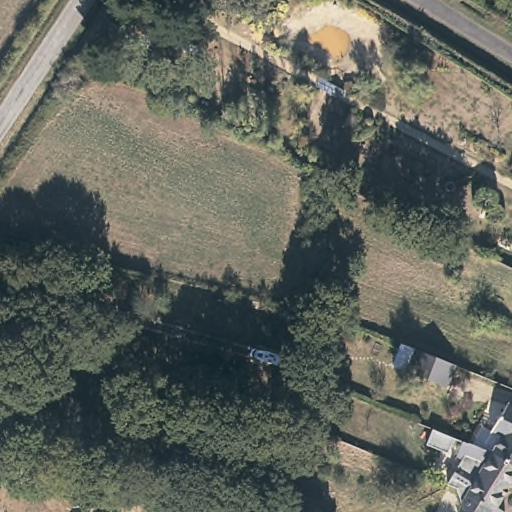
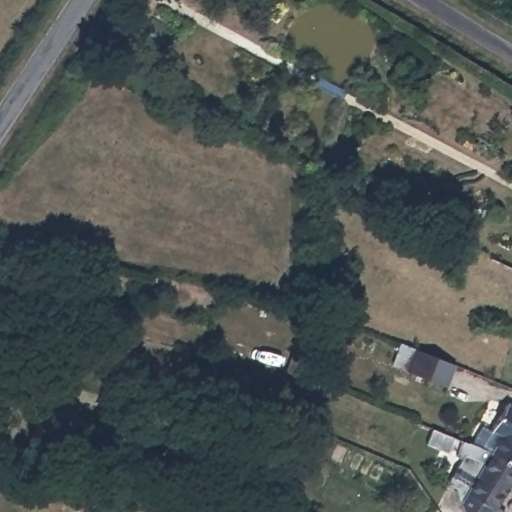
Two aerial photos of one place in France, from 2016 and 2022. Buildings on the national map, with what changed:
unchanged [(456,368),(446,389),(405,372),(414,350),(456,368)]
unchanged [(493,428),(509,401),(512,403),(512,463),(494,452),(475,444),(486,425),(493,428)]
unchanged [(468,508),(465,500),(485,467),(461,458),(466,441),(475,444),(494,452),(512,463),(512,488),(499,509),(505,512),(471,512),(472,511),(468,508)]
unchanged [(437,459),(431,473),(411,463),(417,450),(437,459)]

